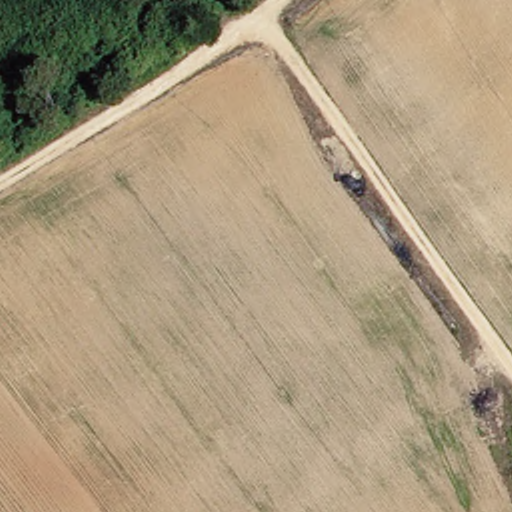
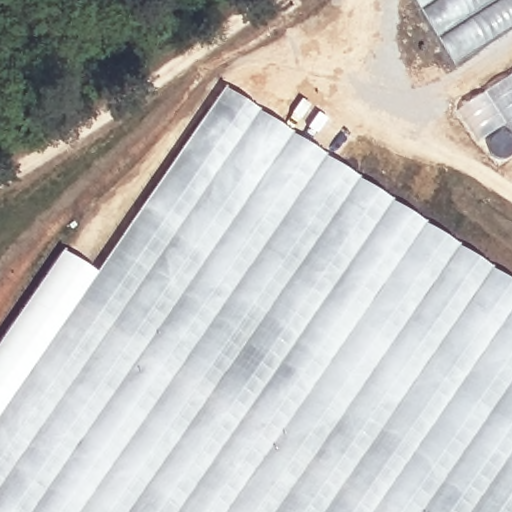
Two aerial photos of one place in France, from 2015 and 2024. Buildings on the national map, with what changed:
new [(512,28),(453,66),(414,0),(512,0),(512,28)]
demolished [(227,53),(465,350),(226,512),(88,512),(0,398),(0,181),(227,53)]
new [(512,139),(504,126),(477,142),(456,110),(512,74),(512,139)]
new [(512,512),(0,512),(0,342),(63,251),(98,273),(225,88),(512,285),(512,512)]
demolished [(492,512),(293,512),(427,422),(492,512)]

